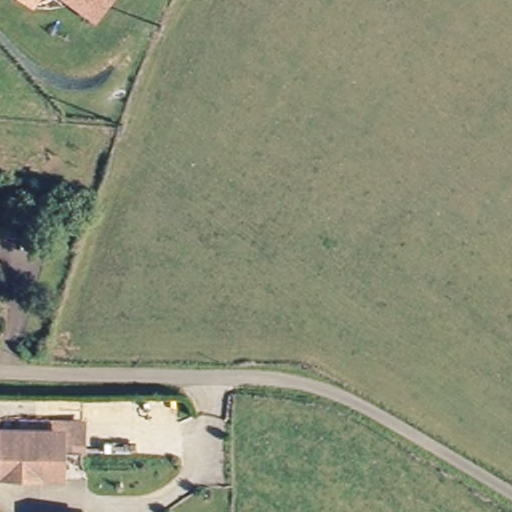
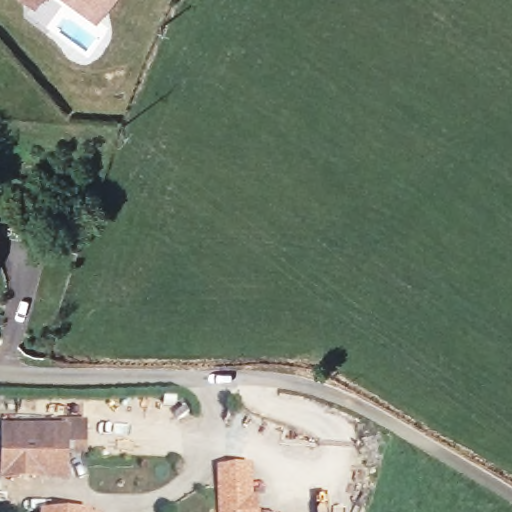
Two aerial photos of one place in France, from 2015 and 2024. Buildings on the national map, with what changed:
unchanged [(36,1),(35,0),(37,0),(36,1)]
unchanged [(106,6),(96,18),(74,0),(111,0),(106,6)]
unchanged [(3,258),(0,258),(0,232),(8,233),(3,258)]
unchanged [(8,478),(8,420),(66,420),(87,420),(87,458),(66,458),(66,479),(8,478)]
new [(254,493),(259,493),(260,512),(217,512),(216,466),(252,464),(254,493)]

